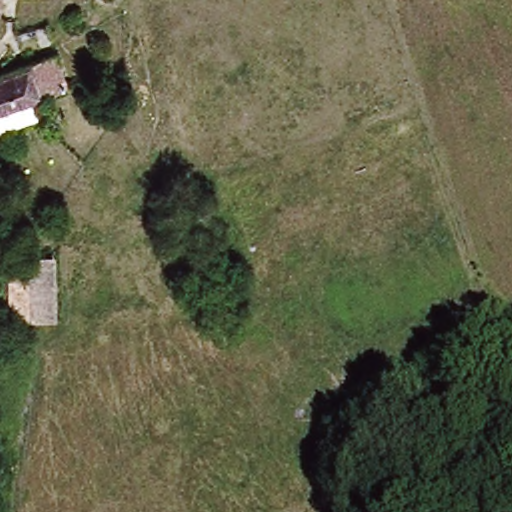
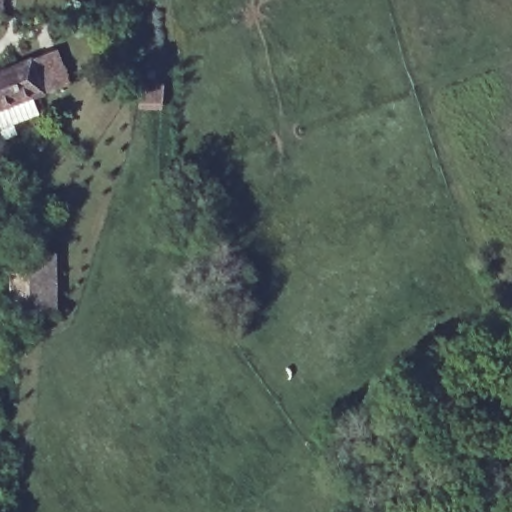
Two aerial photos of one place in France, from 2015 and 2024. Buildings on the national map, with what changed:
unchanged [(60,58),(71,86),(0,116),(0,80),(60,58)]
unchanged [(13,317),(13,255),(61,255),(60,317),(13,317)]

